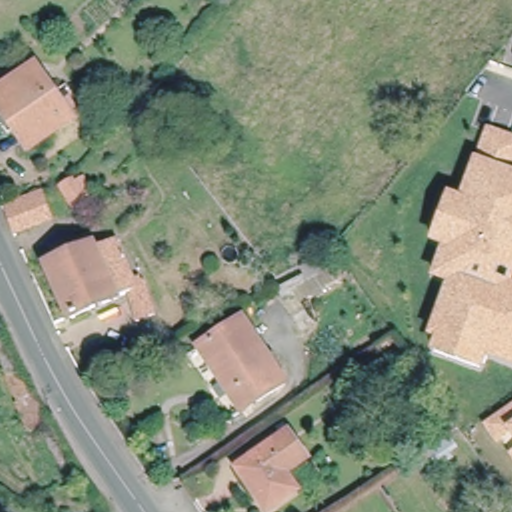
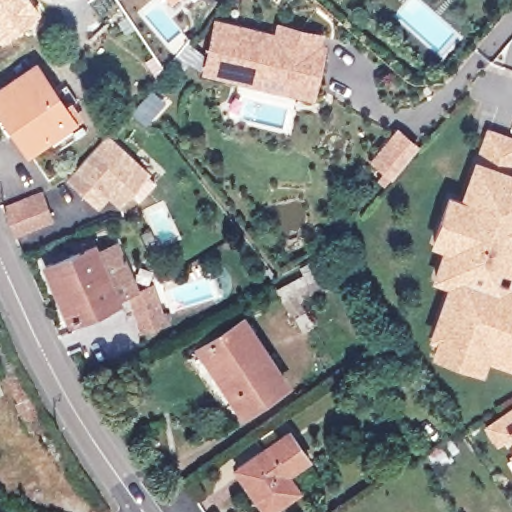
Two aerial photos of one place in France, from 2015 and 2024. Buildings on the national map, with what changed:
new [(0,42),(0,0),(31,0),(41,12),(0,42)]
new [(170,0),(172,0),(171,1),(170,0)]
new [(202,75),(216,18),(275,32),(277,21),(324,32),(322,41),(327,43),(314,99),(202,75)]
unchanged [(29,153),(0,109),(0,91),(36,68),(72,124),(29,153)]
unchanged [(147,128),(137,119),(153,100),(162,109),(147,128)]
unchanged [(512,136),(512,367),(487,359),(481,374),(427,355),(432,342),(425,339),(444,284),(429,279),(440,247),(427,244),(447,193),(460,197),(484,128),(512,136)]
new [(398,133),(417,149),(392,178),(374,162),(398,133)]
new [(106,134),(147,167),(120,204),(107,195),(97,205),(66,178),(106,134)]
demolished [(42,224),(12,237),(2,210),(69,183),(77,194),(86,189),(91,198),(42,224)]
new [(51,220),(14,233),(4,204),(40,189),(51,220)]
unchanged [(119,300),(72,322),(47,268),(82,252),(79,245),(94,239),(97,247),(114,239),(134,282),(139,290),(119,300)]
unchanged [(139,290),(134,282),(147,274),(167,315),(134,332),(119,300),(139,290)]
unchanged [(237,321),(281,382),(241,411),(197,349),(237,321)]
unchanged [(44,439),(39,431),(31,435),(16,406),(17,404),(5,379),(10,376),(4,366),(8,364),(1,352),(7,348),(19,371),(32,396),(52,435),(44,439)]
unchanged [(511,437),(496,447),(482,426),(512,406),(512,438),(511,437)]
unchanged [(304,462),(282,476),(293,493),(265,512),(259,512),(232,469),(284,434),(304,462)]
unchanged [(448,441),(453,449),(445,454),(450,463),(441,469),(430,454),(448,441)]
unchanged [(507,454),(512,451),(512,461),(507,454)]

